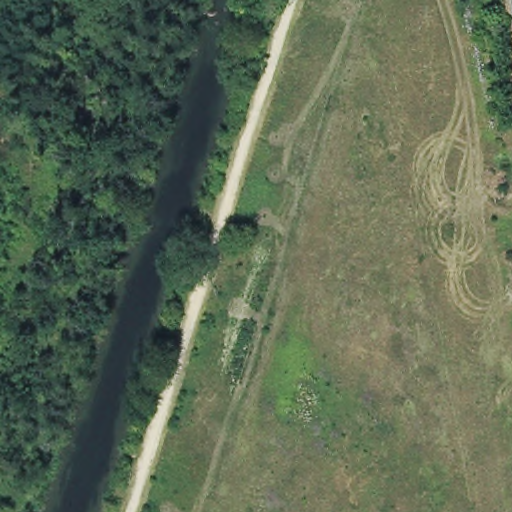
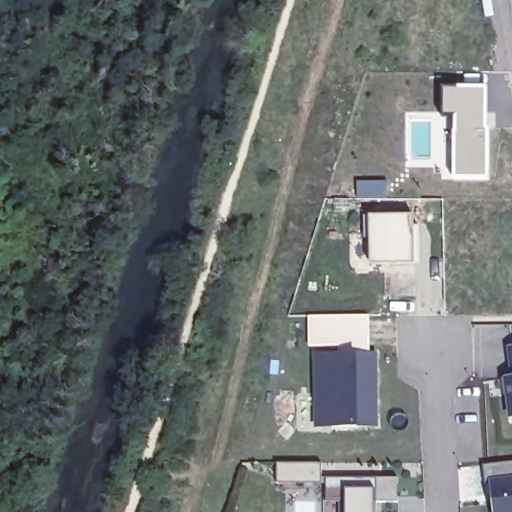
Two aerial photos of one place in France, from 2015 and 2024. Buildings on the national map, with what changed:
new [(492,83),(490,183),(461,185),(459,116),(445,116),(445,83),(492,83)]
new [(371,264),(370,240),(363,239),(363,214),(414,214),(415,263),(371,264)]
new [(503,377),(510,377),(505,346),(512,346),(512,418),(508,418),(503,377)]
new [(380,427),(315,428),(313,353),(378,352),(380,427)]
new [(485,482),(484,464),(512,462),(512,512),(495,512),(491,483),(485,482)]
new [(377,478),(377,512),(326,512),(326,478),(377,478)]

